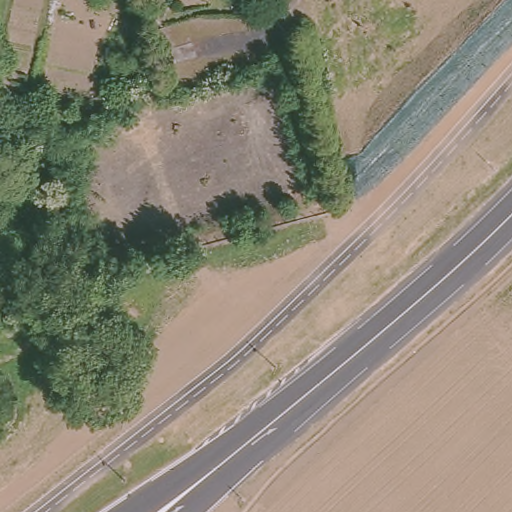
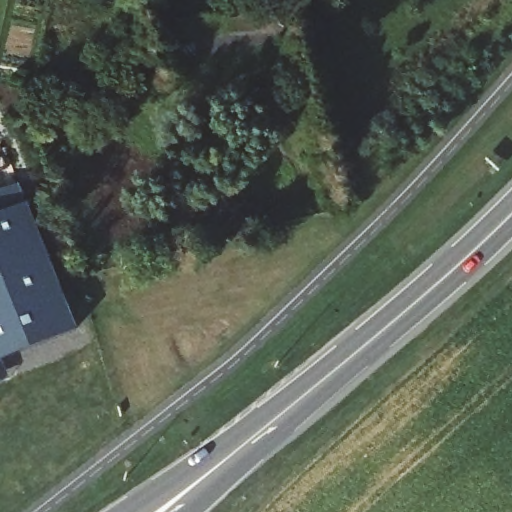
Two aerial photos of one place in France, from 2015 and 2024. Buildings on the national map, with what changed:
new [(75,332),(0,361),(0,192),(17,186),(24,206),(75,332)]
new [(0,361),(8,379),(0,382),(0,361)]

